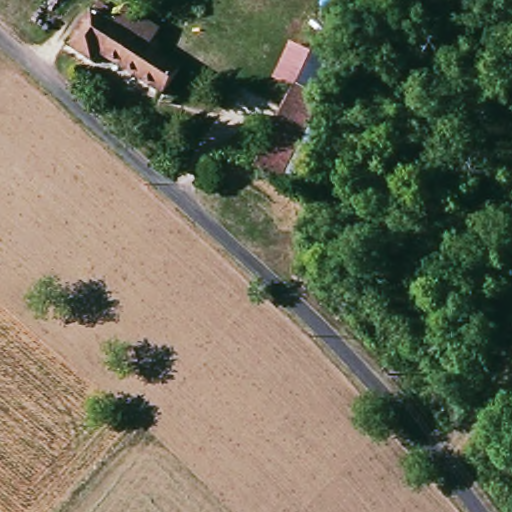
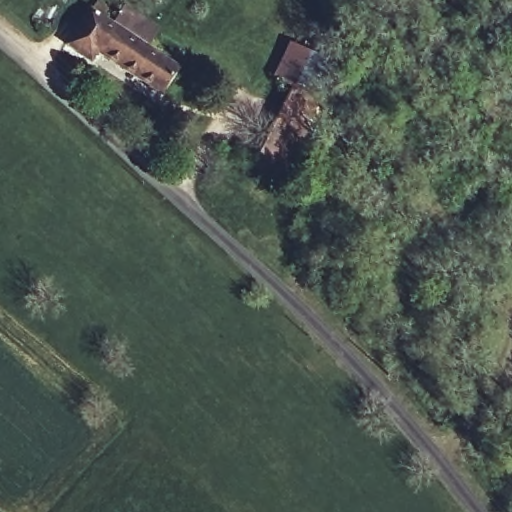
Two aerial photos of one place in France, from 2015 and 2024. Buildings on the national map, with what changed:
unchanged [(64,53),(90,10),(114,25),(124,10),(163,33),(153,50),(182,69),(162,98),(100,59),(95,68),(64,53)]
unchanged [(295,87),(344,108),(301,190),(253,169),(295,87)]

